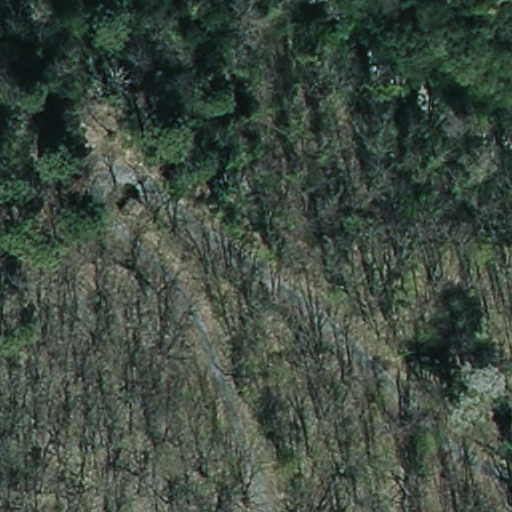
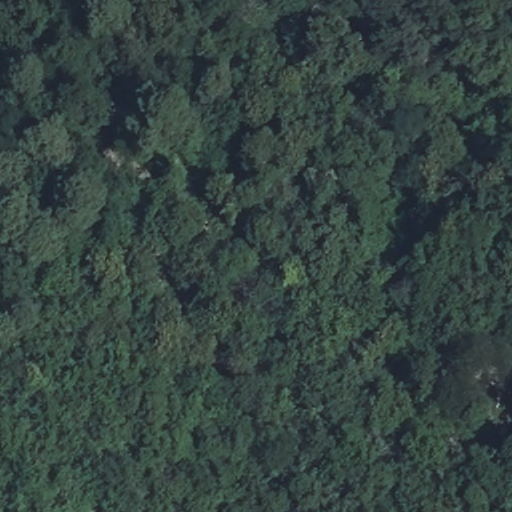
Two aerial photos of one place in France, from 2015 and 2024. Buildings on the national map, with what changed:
unchanged [(95,173),(108,157),(123,168),(110,184),(95,173)]

